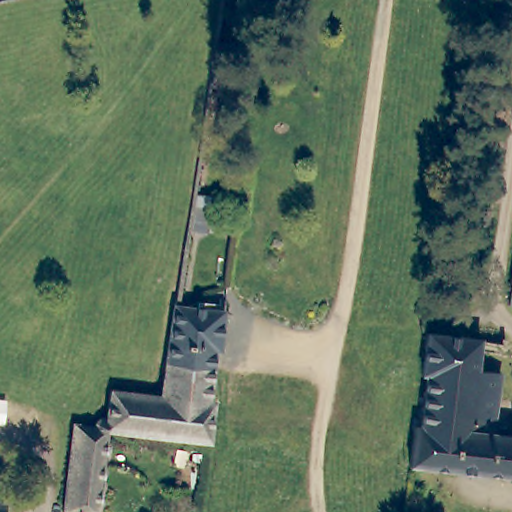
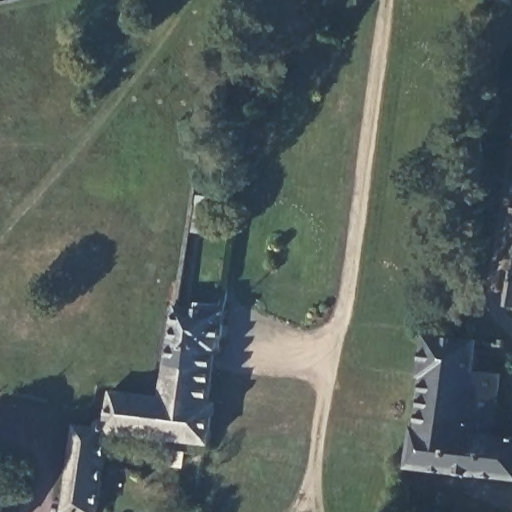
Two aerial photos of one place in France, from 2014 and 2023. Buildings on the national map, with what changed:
unchanged [(507,305),(512,271),(512,305),(507,305)]
unchanged [(160,398),(160,393),(163,374),(166,358),(175,305),(225,311),(220,348),(217,347),(212,365),(211,381),(207,400),(160,398)]
unchanged [(406,469),(411,431),(415,431),(422,375),(417,374),(423,336),(471,341),(476,342),(475,349),(473,376),(495,380),(489,438),(512,440),(512,480),(410,470),(406,469)]
unchanged [(207,444),(105,432),(106,418),(107,415),(110,390),(129,393),(160,398),(207,400),(212,400),(207,444)]
unchanged [(102,443),(92,512),(61,512),(63,494),(63,492),(65,479),(69,446),(72,426),(85,428),(89,428),(89,427),(90,426),(90,425),(91,423),(92,421),(93,419),(95,417),(96,417),(97,416),(99,415),(102,415),(103,415),(104,415),(105,415),(107,415),(106,418),(105,432),(102,443)]
unchanged [(3,512),(0,512),(0,506),(4,506),(3,512)]

